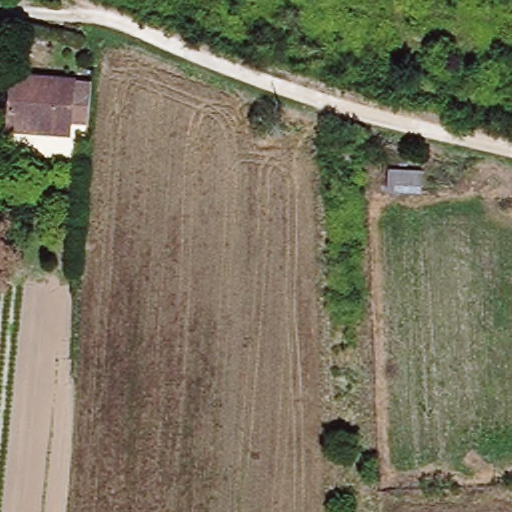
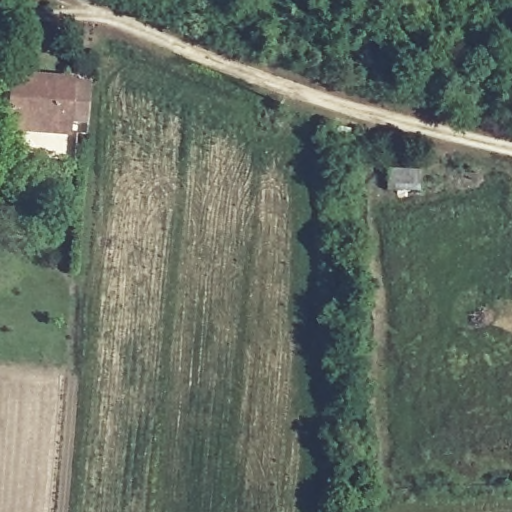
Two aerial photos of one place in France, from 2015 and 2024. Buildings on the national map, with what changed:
unchanged [(30,132),(9,131),(13,75),(74,80),(73,83),(91,85),(88,123),(70,122),(70,125),(69,135),(30,132)]
unchanged [(355,168),(333,168),(333,151),(355,151),(355,168)]
unchanged [(420,194),(386,192),(387,170),(421,172),(420,194)]

